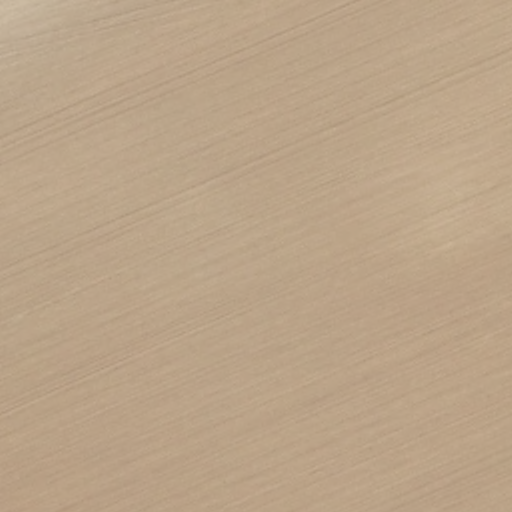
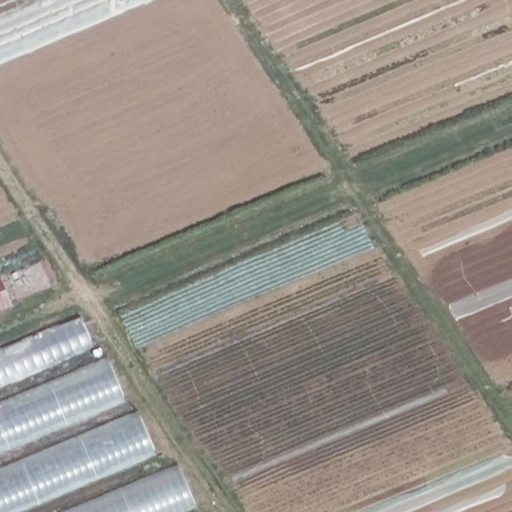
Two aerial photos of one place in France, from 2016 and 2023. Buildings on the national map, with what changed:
new [(95,347),(0,387),(0,356),(84,320),(95,347)]
new [(125,399),(0,451),(0,411),(111,365),(125,399)]
new [(157,452),(15,512),(0,512),(0,478),(142,419),(157,452)]
new [(197,505),(179,512),(86,512),(182,472),(197,505)]

